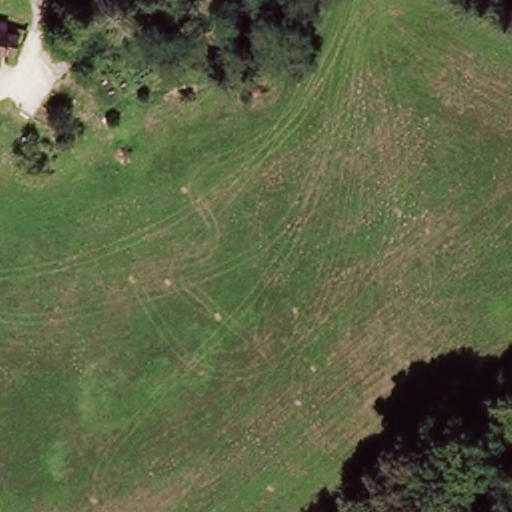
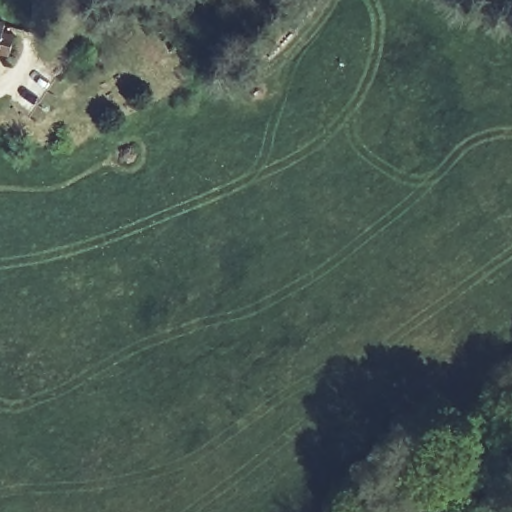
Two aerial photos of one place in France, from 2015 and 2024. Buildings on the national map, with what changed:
unchanged [(8,20),(0,48),(0,18),(8,20)]

